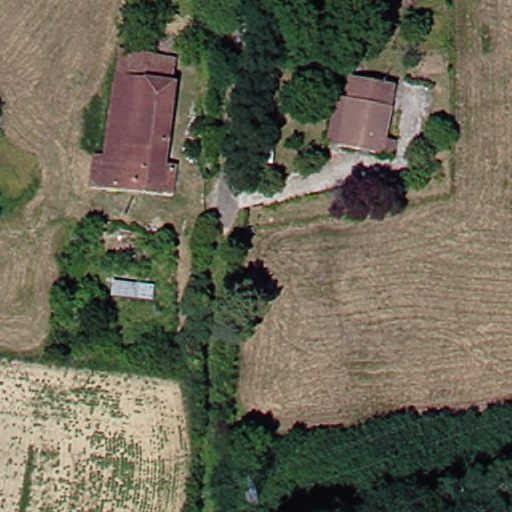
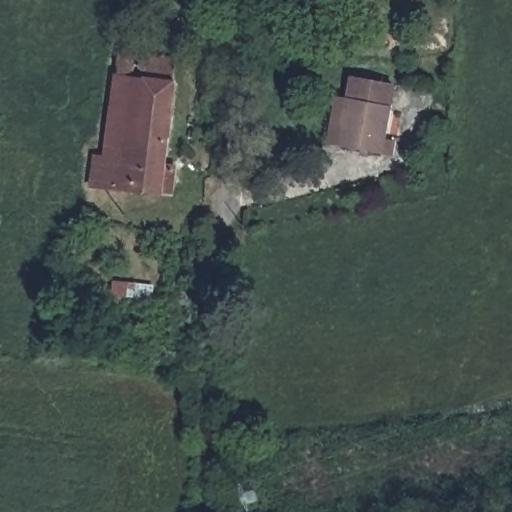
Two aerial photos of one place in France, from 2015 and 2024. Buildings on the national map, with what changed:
unchanged [(122,76),(125,51),(184,58),(182,83),(122,76)]
unchanged [(390,159),(378,155),(338,142),(324,137),(340,93),(350,96),(357,75),(401,91),(382,142),(394,146),(390,159)]
unchanged [(101,175),(103,156),(112,158),(122,76),(182,83),(168,196),(109,189),(99,187),(101,175)]

